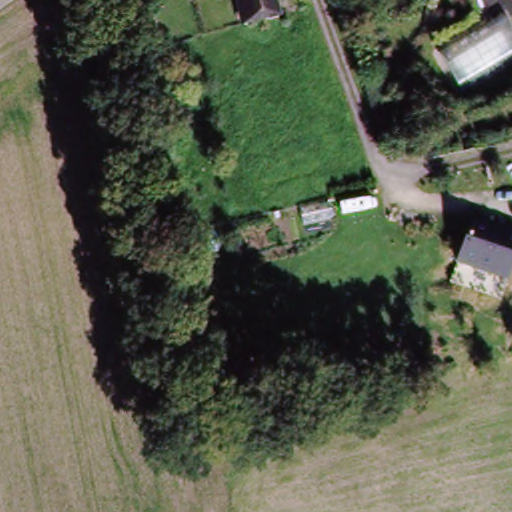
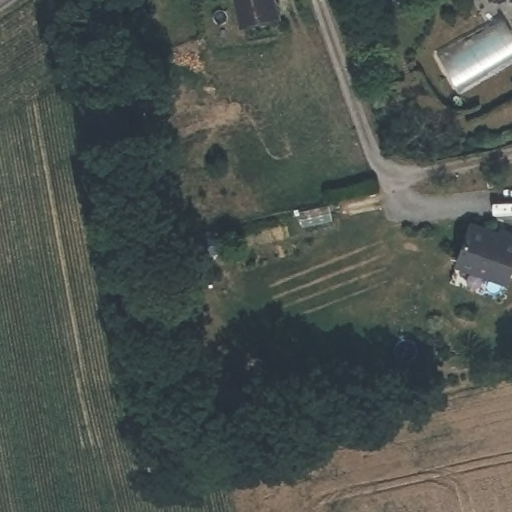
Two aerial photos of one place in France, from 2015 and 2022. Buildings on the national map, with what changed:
unchanged [(240,0),(275,0),(278,14),(246,23),(240,0)]
unchanged [(510,0),(511,0),(510,1),(510,0)]
unchanged [(473,221),(512,235),(512,275),(508,287),(456,269),(473,221)]

